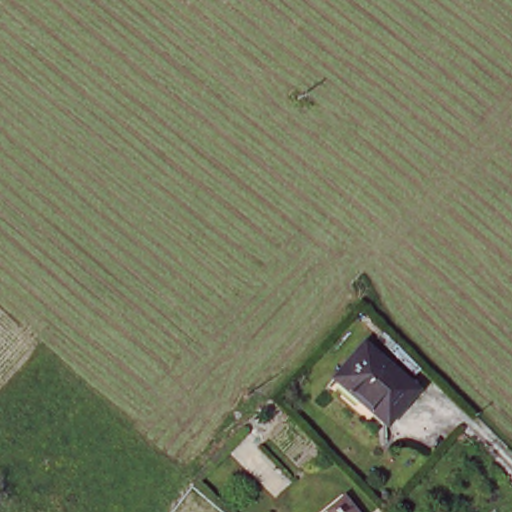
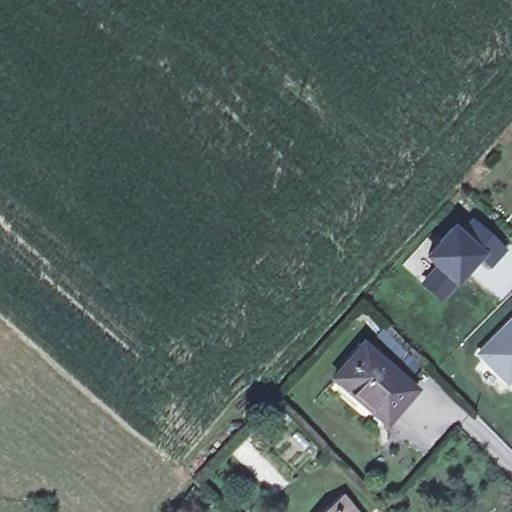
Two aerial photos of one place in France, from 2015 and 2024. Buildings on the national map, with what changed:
new [(439,266),(427,256),(452,228),(460,235),(472,222),(502,249),(490,263),(479,253),(439,297),(423,283),(439,266)]
new [(507,381),(480,353),(512,320),(512,376),(507,381)]
unchanged [(362,344),(413,388),(385,422),(334,377),(362,344)]
unchanged [(332,512),(344,502),(352,512),(323,512),(330,507),(332,512)]

